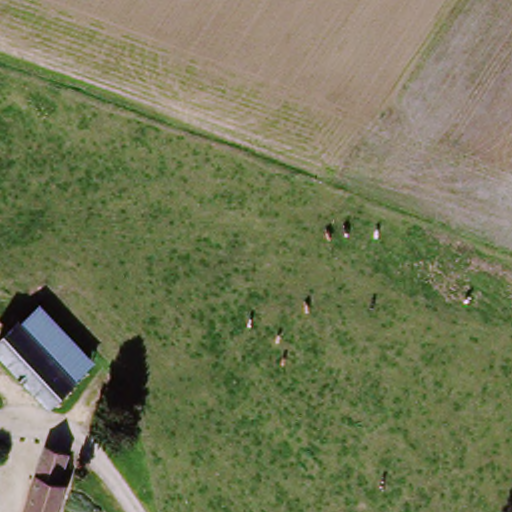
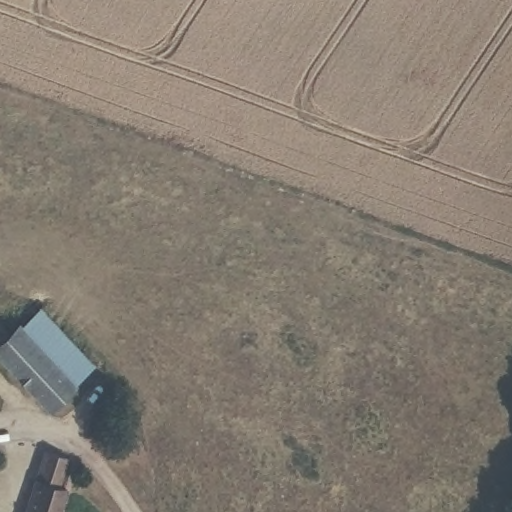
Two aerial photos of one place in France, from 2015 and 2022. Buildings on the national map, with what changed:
unchanged [(91,366),(71,384),(20,328),(40,309),(91,366)]
unchanged [(71,384),(45,407),(0,357),(0,345),(20,328),(71,384)]
unchanged [(56,494),(51,512),(20,512),(37,457),(58,464),(49,491),(56,494)]

